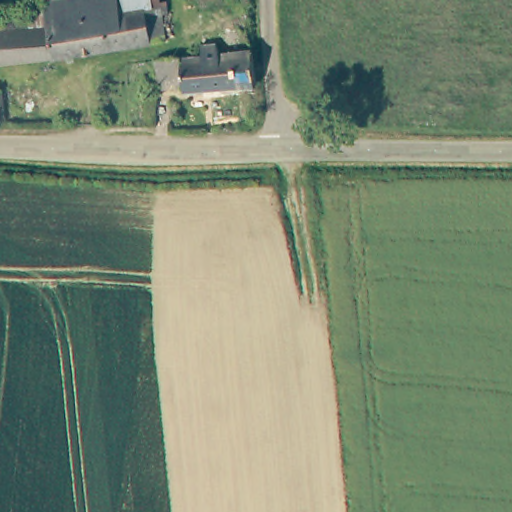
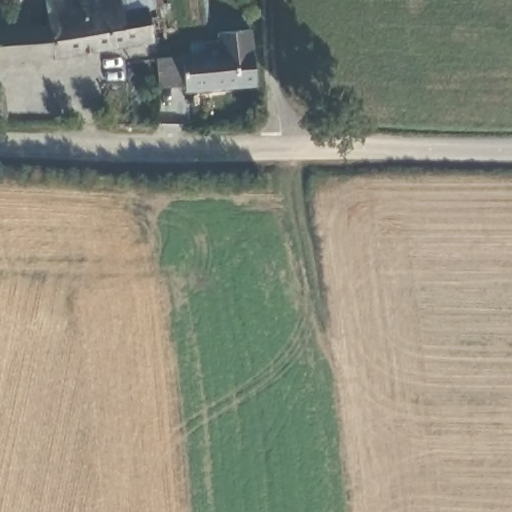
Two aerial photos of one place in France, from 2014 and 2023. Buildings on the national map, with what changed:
unchanged [(160,5),(166,4),(167,13),(175,13),(179,34),(165,35),(165,39),(151,41),(61,57),(0,63),(0,12),(15,9),(13,0),(159,0),(160,5)]
unchanged [(156,59),(202,53),(201,43),(216,41),(217,45),(219,50),(251,47),(255,86),(185,91),(183,85),(159,88),(156,59)]
unchanged [(3,89),(6,122),(0,122),(0,89),(3,89)]

